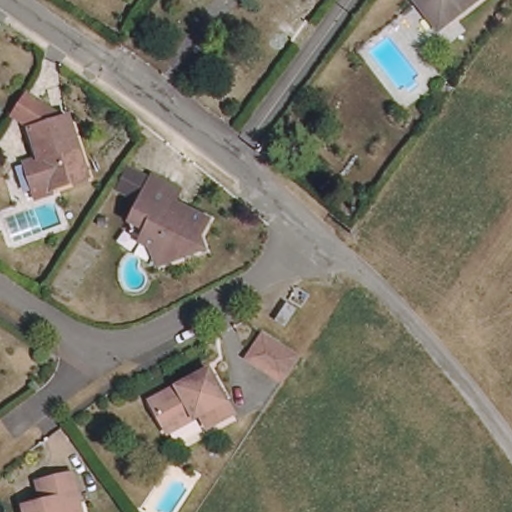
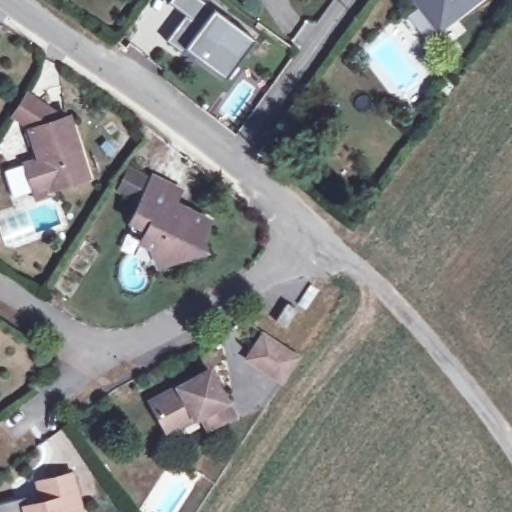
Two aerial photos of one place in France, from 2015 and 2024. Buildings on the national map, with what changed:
new [(213,9),(254,37),(222,78),(185,48),(180,49),(165,40),(184,14),(167,3),(163,0),(199,0),(212,11),(213,9)]
unchanged [(413,0),(480,0),(440,34),(413,0)]
unchanged [(30,164),(43,159),(34,129),(15,117),(29,96),(65,119),(73,116),(95,178),(57,191),(55,185),(40,190),(30,164)]
unchanged [(184,244),(187,256),(153,270),(145,255),(147,253),(136,247),(141,236),(128,229),(137,214),(132,212),(147,180),(175,194),(165,215),(180,223),(184,217),(203,227),(197,239),(184,244)]
unchanged [(264,299),(274,305),(261,324),(251,318),(264,299)]
unchanged [(262,379),(233,361),(226,356),(244,330),(250,334),(250,335),(280,353),(262,379)]
unchanged [(165,433),(150,408),(210,374),(237,419),(211,433),(204,421),(194,426),(168,440),(165,433)]
unchanged [(20,511),(42,507),(37,484),(74,476),(80,506),(82,512),(21,512),(20,511)]

